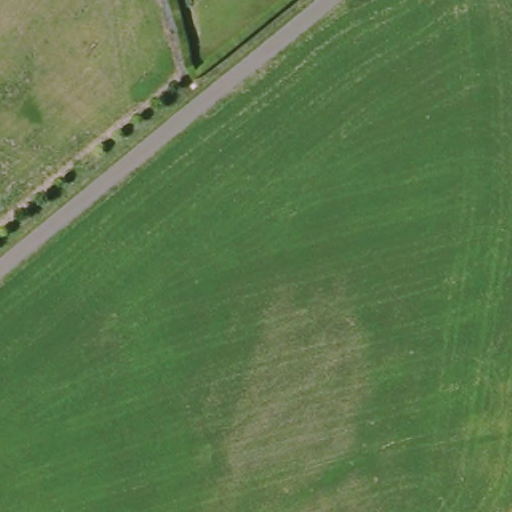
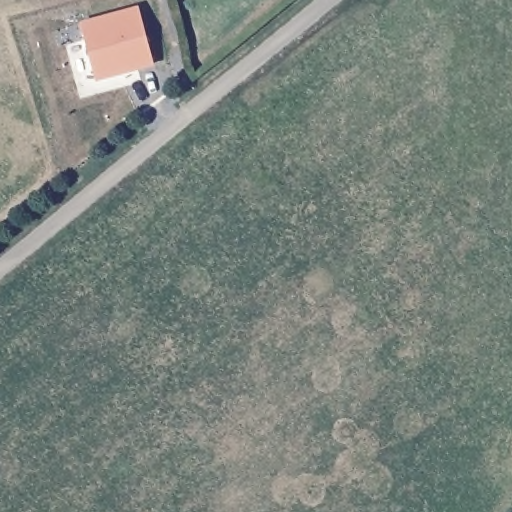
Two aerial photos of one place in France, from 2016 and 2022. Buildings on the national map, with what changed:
new [(138,8),(155,65),(96,81),(80,21),(138,8)]

